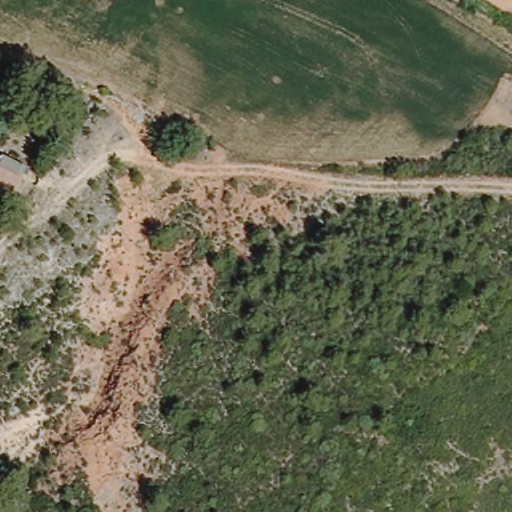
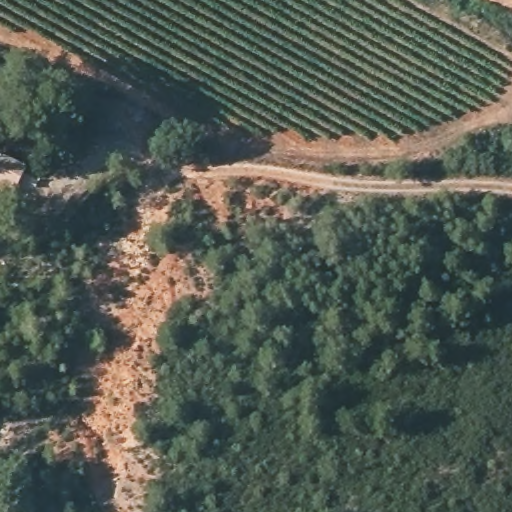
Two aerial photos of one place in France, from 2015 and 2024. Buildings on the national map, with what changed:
unchanged [(13,194),(0,188),(0,169),(21,178),(13,194)]

